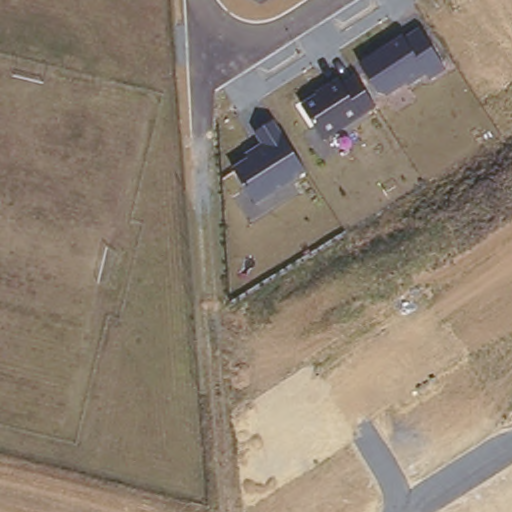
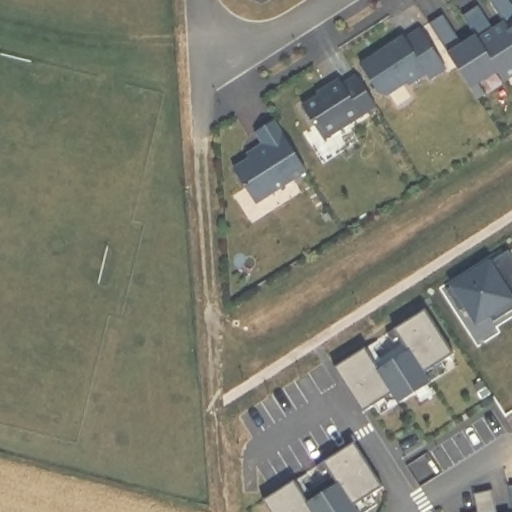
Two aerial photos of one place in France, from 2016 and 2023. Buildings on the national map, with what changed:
new [(491,0),(510,0),(512,3),(512,22),(507,25),(511,31),(512,31),(512,79),(506,82),(500,72),(477,38),(465,17),(480,7),(496,31),(507,24),(491,0)]
new [(431,25),(445,16),(464,47),(477,38),(500,72),(478,85),(486,96),(477,101),(449,56),(431,25)]
unchanged [(379,93),(361,66),(421,30),(446,73),(430,84),(425,75),(387,96),(379,93)]
unchanged [(303,104),(343,78),(348,86),(360,79),(377,107),(327,143),(303,104)]
unchanged [(232,169),(249,159),(246,154),(262,144),(255,131),(275,120),(306,170),(255,205),(232,169)]
new [(487,318),(475,326),(465,310),(458,314),(443,290),(505,250),(512,261),(512,312),(492,325),(487,318)]
new [(366,353),(380,375),(410,356),(401,342),(393,347),(388,339),(427,315),(456,360),(425,380),(432,389),(401,409),(394,400),(364,420),(335,373),(366,353)]
new [(295,483),(308,505),(338,486),(329,472),(322,477),(317,469),(356,445),(385,491),(355,510),(356,512),(269,512),(263,502),(295,483)]
new [(512,503),(508,487),(512,486),(512,503)]
new [(475,496),(492,492),(496,512),(478,512),(475,496)]

